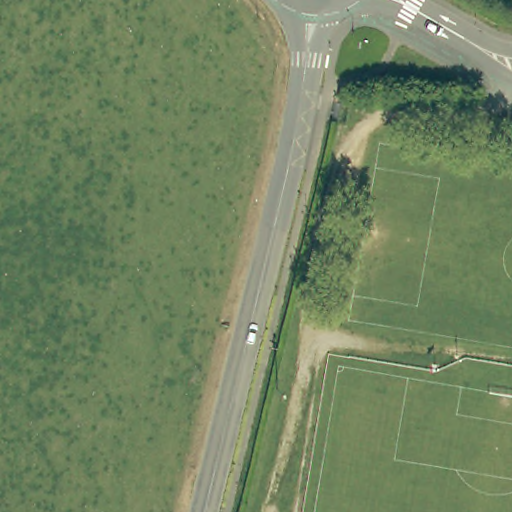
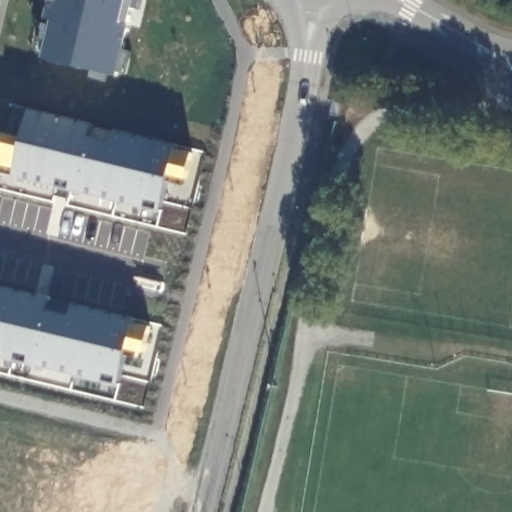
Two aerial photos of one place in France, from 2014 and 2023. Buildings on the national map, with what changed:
new [(130,7),(120,49),(130,51),(124,75),(116,73),(115,78),(44,60),(44,55),(36,53),(48,2),(42,0),(141,0),(139,9),(130,7)]
new [(13,177),(15,170),(0,165),(0,157),(7,135),(19,138),(24,111),(20,110),(21,106),(25,108),(26,103),(87,118),(85,123),(92,125),(90,136),(114,142),(116,131),(126,133),(128,129),(179,140),(161,214),(13,177)]
new [(47,311),(74,318),(75,306),(135,320),(133,325),(149,328),(145,354),(141,360),(126,353),(119,388),(0,359),(0,287),(50,298),(47,311)]

